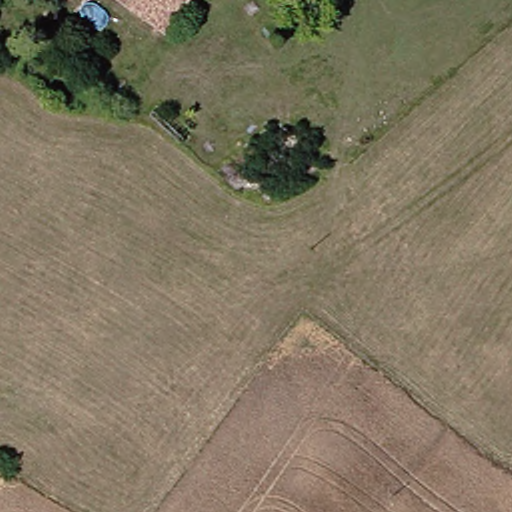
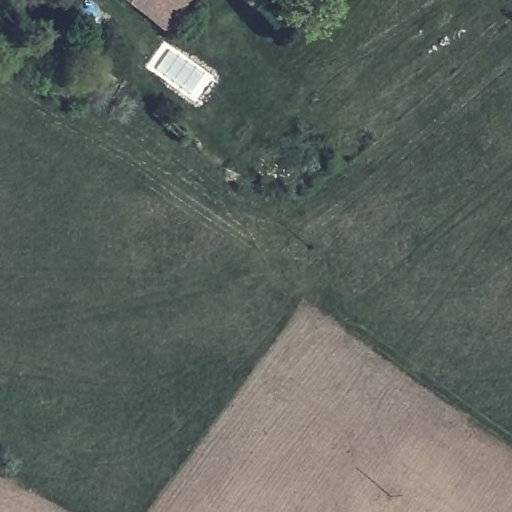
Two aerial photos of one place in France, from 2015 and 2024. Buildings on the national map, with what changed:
unchanged [(167,27),(129,0),(184,0),(167,27)]

